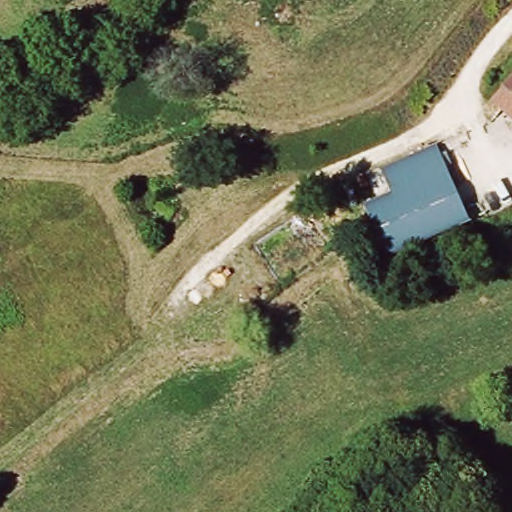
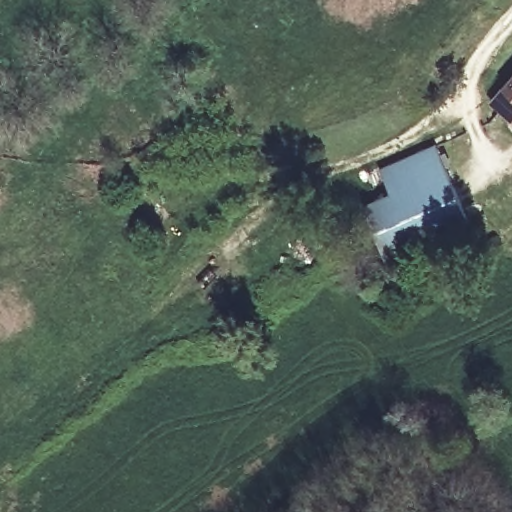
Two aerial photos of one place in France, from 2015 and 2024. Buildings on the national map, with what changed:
unchanged [(512,108),(501,99),(512,86),(512,108)]
unchanged [(472,220),(390,257),(366,207),(391,195),(380,172),(407,161),(438,147),(472,220)]
unchanged [(128,191),(155,177),(165,196),(138,210),(128,191)]

